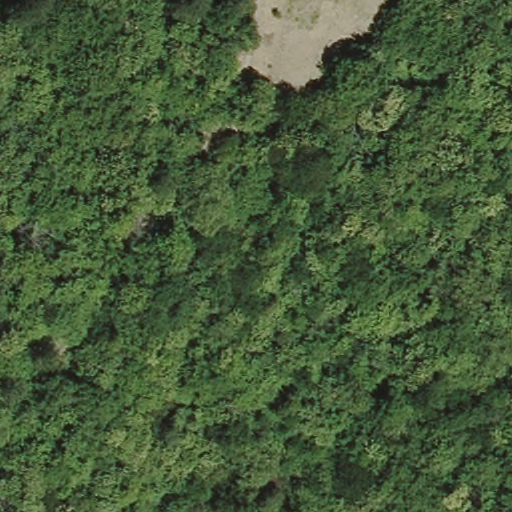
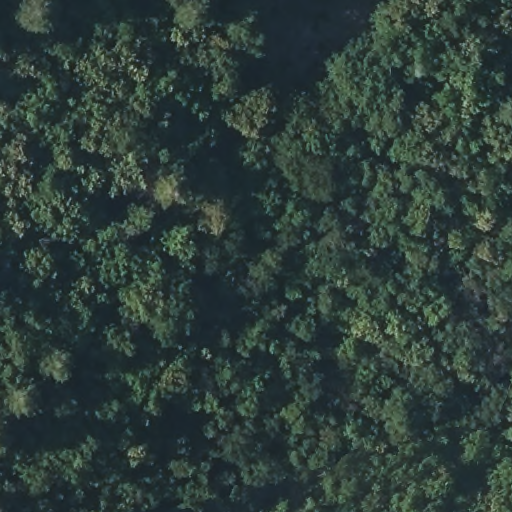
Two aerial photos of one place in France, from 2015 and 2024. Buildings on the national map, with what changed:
unchanged [(479,53),(512,66),(512,72),(506,94),(471,80),(479,53)]

